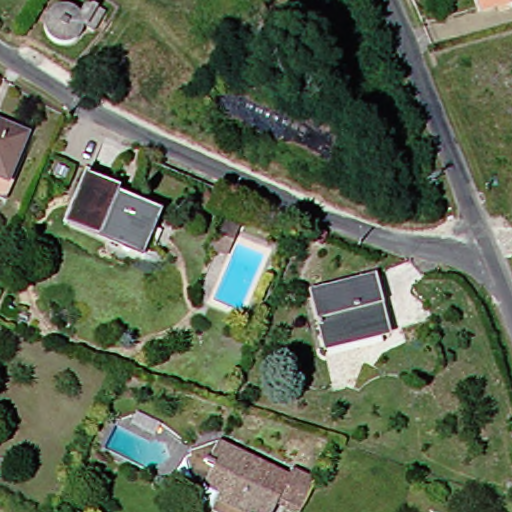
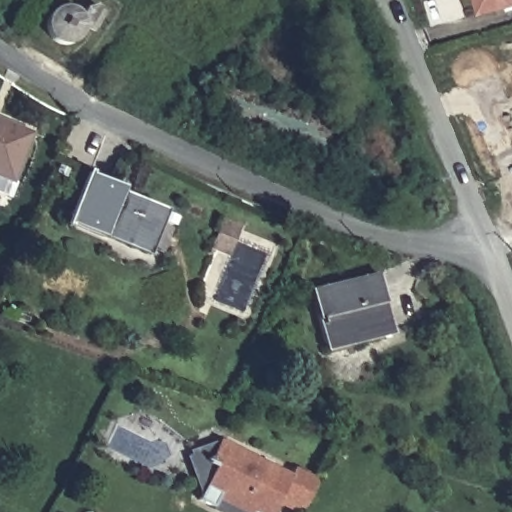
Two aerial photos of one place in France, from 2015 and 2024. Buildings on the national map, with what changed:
unchanged [(488,9),(485,0),(512,0),(512,2),(488,9)]
unchanged [(0,187),(0,136),(25,146),(7,190),(0,187)]
unchanged [(121,189),(165,207),(163,212),(144,258),(64,225),(85,174),(121,189)]
unchanged [(325,349),(310,291),(376,275),(390,333),(325,349)]
unchanged [(145,395),(118,385),(123,371),(150,381),(145,395)]
unchanged [(283,500),(277,512),(224,512),(202,501),(209,487),(203,485),(199,473),(209,453),(216,457),(224,441),(294,476),(297,470),(321,481),(307,511),(283,500)]

